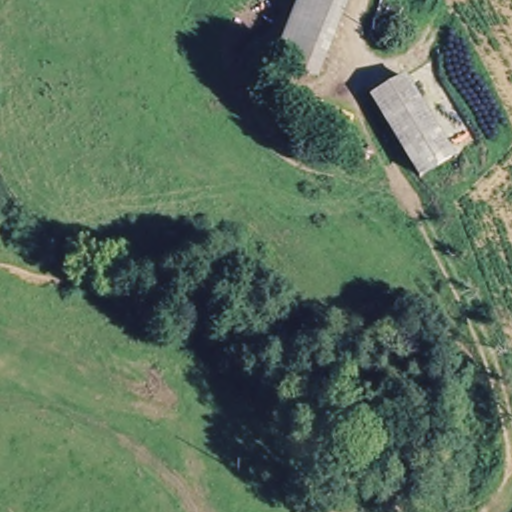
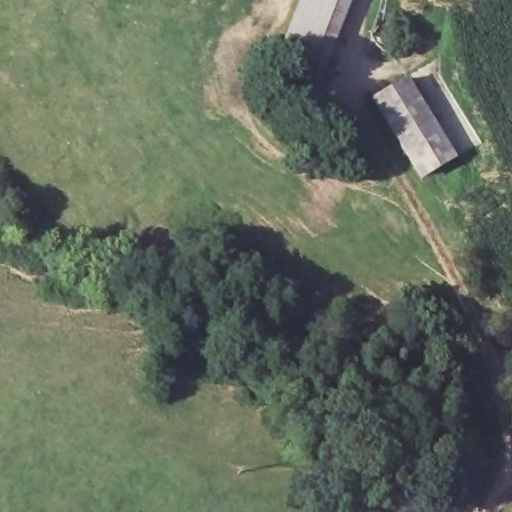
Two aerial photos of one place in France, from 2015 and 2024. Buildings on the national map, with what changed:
unchanged [(270,69),(296,0),(345,0),(336,21),(313,80),(270,69)]
unchanged [(369,96),(406,76),(446,156),(406,177),(369,96)]

